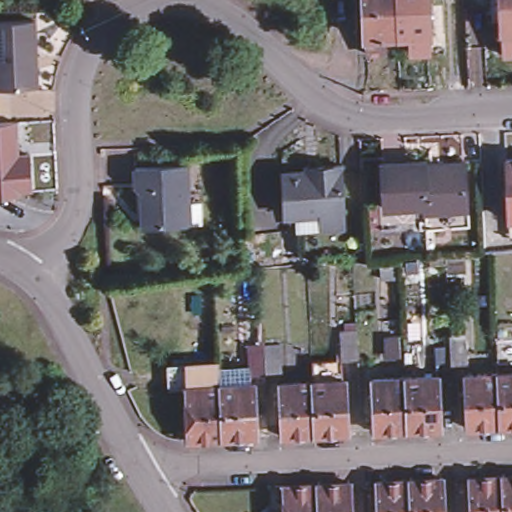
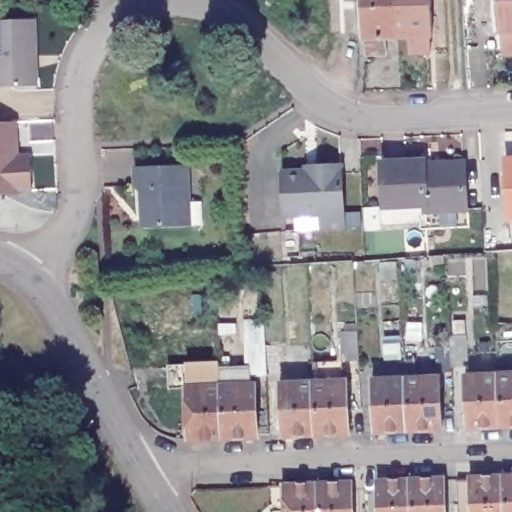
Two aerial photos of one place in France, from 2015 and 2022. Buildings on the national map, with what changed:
unchanged [(410,48),(409,33),(397,34),(385,34),(386,50),(367,51),(367,35),(363,35),(361,0),(429,0),(430,32),(429,32),(430,47),(418,47),(419,56),(410,56),(410,48)]
unchanged [(497,0),(512,0),(512,50),(502,50),(502,28),(499,28),(497,0)]
unchanged [(33,14),(35,52),(30,52),(30,61),(35,64),(36,83),(0,85),(0,15),(33,14)]
unchanged [(17,150),(29,150),(31,187),(19,188),(19,191),(0,192),(0,119),(15,118),(17,150)]
unchanged [(505,155),(512,155),(512,218),(507,218),(505,155)]
unchanged [(424,161),(440,160),(463,159),(465,205),(425,207),(425,202),(385,203),(382,159),(424,158),(424,161)]
unchanged [(292,229),(291,213),(278,214),(277,169),(300,168),(300,163),(312,163),(335,161),(337,211),(339,227),(292,229)]
unchanged [(200,223),(180,224),(140,226),(139,202),(142,202),(142,188),(139,189),(133,184),(132,165),(185,162),(187,200),(199,200),(200,223)]
unchanged [(340,368),(339,338),(356,337),(357,367),(340,368)]
unchanged [(466,342),(467,372),(450,373),(449,343),(466,342)]
unchanged [(265,390),(249,391),(247,363),(263,362),(280,361),(282,389),(312,389),(313,389),(312,369),(340,367),(341,387),(347,387),(351,441),(314,443),(281,444),(278,392),(278,390),(265,390)]
unchanged [(404,373),(440,369),(440,370),(441,426),(405,428),(404,373)]
unchanged [(373,429),(370,375),(370,374),(404,373),(405,428),(373,429)]
unchanged [(223,454),(190,455),(185,409),(185,404),(169,405),(167,382),(217,380),(219,402),(253,400),(252,404),(255,453),(223,454)]
unchanged [(512,380),(512,433),(497,434),(497,381),(512,380)]
unchanged [(468,435),(465,382),(497,381),(497,434),(468,435)]
unchanged [(282,512),(280,480),(349,478),(351,512),(282,512)]
unchanged [(512,512),(504,512),(501,480),(512,479),(512,512)]
unchanged [(501,480),(504,512),(470,512),(468,482),(501,480)]
unchanged [(439,481),(439,484),(440,512),(411,512),(408,483),(439,481)]
unchanged [(379,485),(408,483),(411,512),(379,512),(379,485)]

